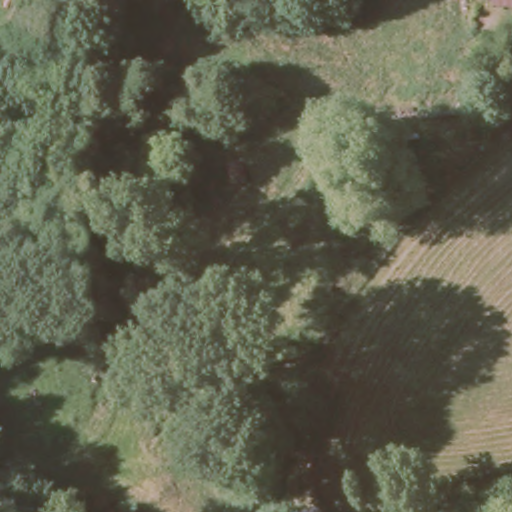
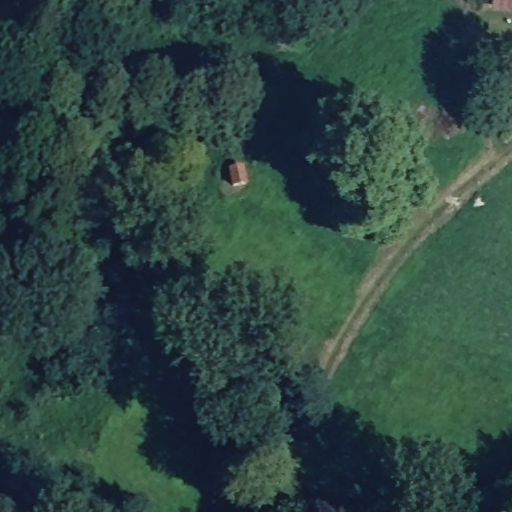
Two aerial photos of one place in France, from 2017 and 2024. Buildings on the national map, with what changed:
unchanged [(494,0),(487,0),(512,0),(512,10),(494,8),(494,0)]
unchanged [(241,169),(243,184),(232,186),(228,172),(241,169)]

